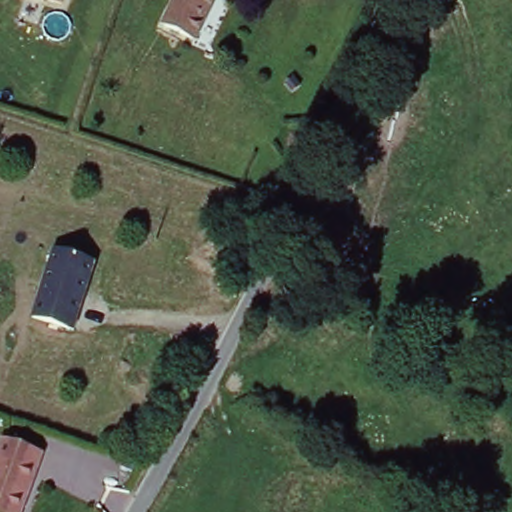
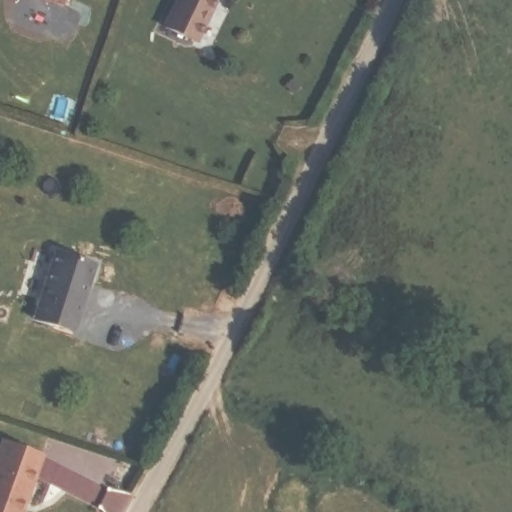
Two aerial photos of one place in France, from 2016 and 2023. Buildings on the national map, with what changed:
unchanged [(58,6),(40,0),(60,0),(58,6)]
unchanged [(216,3),(192,49),(159,30),(174,0),(209,0),(216,3)]
unchanged [(297,87),(288,95),(282,87),(291,78),(297,87)]
unchanged [(45,252),(90,262),(72,336),(28,321),(45,252)]
unchanged [(41,457),(22,512),(0,512),(0,443),(41,457)]

